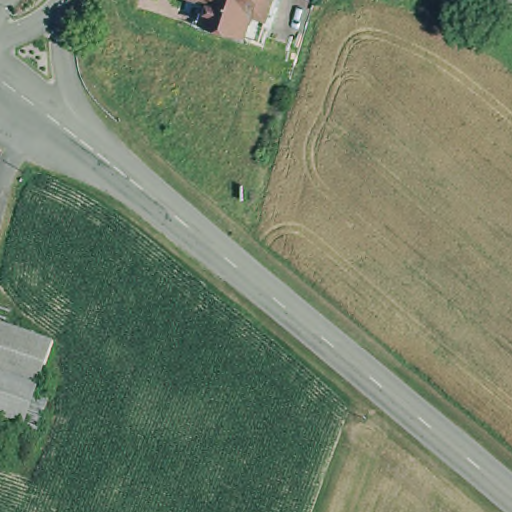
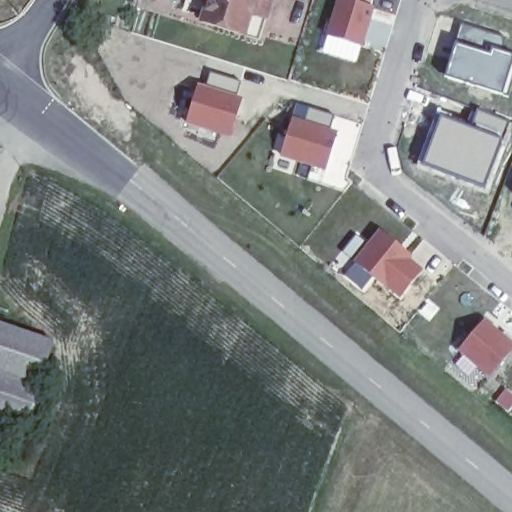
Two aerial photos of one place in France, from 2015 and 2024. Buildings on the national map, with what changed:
unchanged [(202,10),(205,0),(266,0),(264,10),(258,27),(243,22),(202,10)]
new [(327,37),(339,0),(349,0),(376,7),(364,48),(327,37)]
new [(492,57),(494,52),(512,57),(512,78),(507,97),(447,77),(456,46),(492,57)]
new [(244,98),(232,139),(187,125),(197,86),(244,98)]
new [(327,172),(282,159),(294,118),(306,122),(311,110),(335,116),(332,130),(339,132),(327,172)]
new [(470,130),(477,112),(507,123),(484,187),(425,164),(440,119),(470,130)]
new [(401,297),(387,285),(386,287),(357,263),(382,232),(412,256),(410,260),(423,272),(401,297)]
unchanged [(0,312),(55,332),(39,374),(0,361),(0,312)]
new [(512,340),(512,354),(490,379),(457,351),(486,317),(512,340)]
unchanged [(42,375),(40,380),(53,385),(37,428),(22,423),(0,416),(0,361),(39,374),(42,375)]

